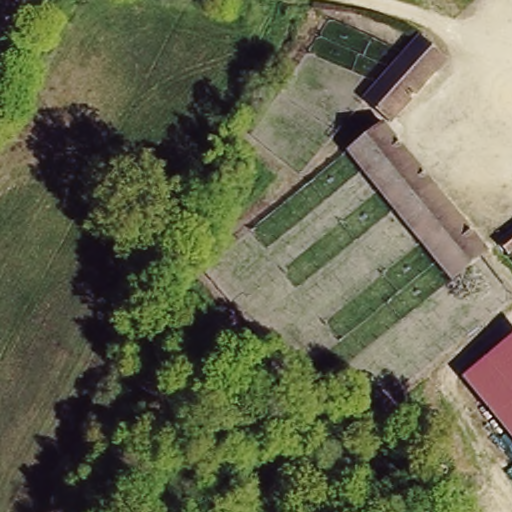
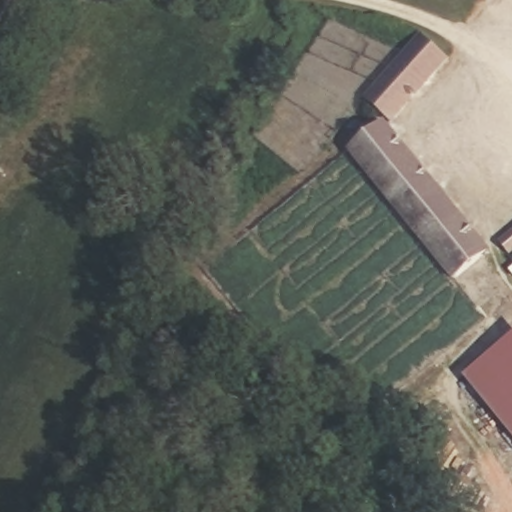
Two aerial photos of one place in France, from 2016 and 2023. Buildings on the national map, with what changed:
unchanged [(419,31),(443,51),(392,112),(368,92),(419,31)]
unchanged [(467,217),(436,243),(359,150),(390,125),(467,217)]
unchanged [(467,217),(492,247),(477,260),(461,272),(436,243),(467,217)]
unchanged [(511,250),(497,235),(512,223),(512,249),(511,250)]
unchanged [(462,375),(512,335),(512,435),(462,375)]

